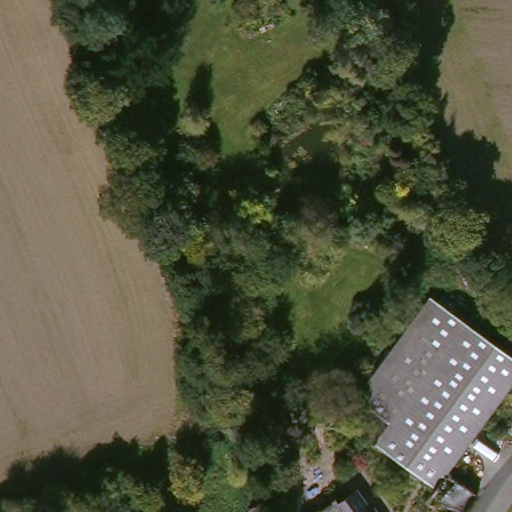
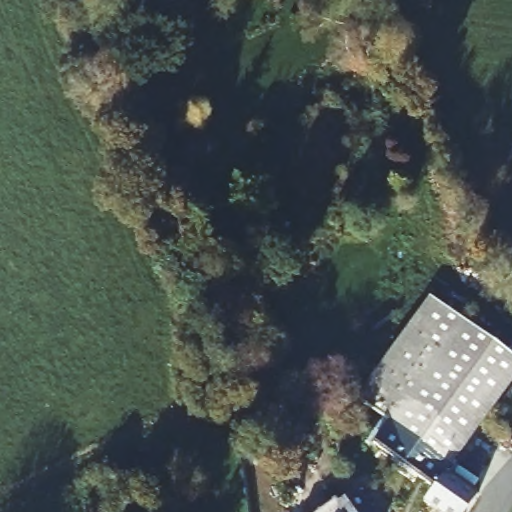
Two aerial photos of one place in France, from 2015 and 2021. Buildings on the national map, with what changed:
unchanged [(425,498),(435,485),(373,444),(387,423),(354,401),(432,295),(512,355),(512,380),(446,468),(447,468),(476,492),(463,512),(442,512),(425,498)]
unchanged [(335,497),(338,502),(356,487),(370,505),(372,503),(379,512),(358,512),(357,512),(349,512),(343,503),(329,512),(314,512),(335,497)]
unchanged [(343,503),(349,512),(329,512),(343,503)]

